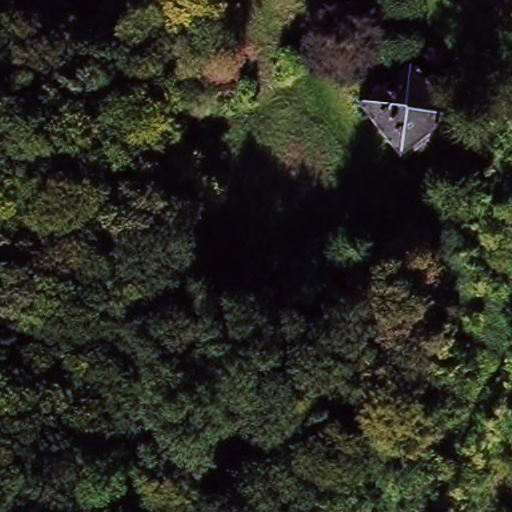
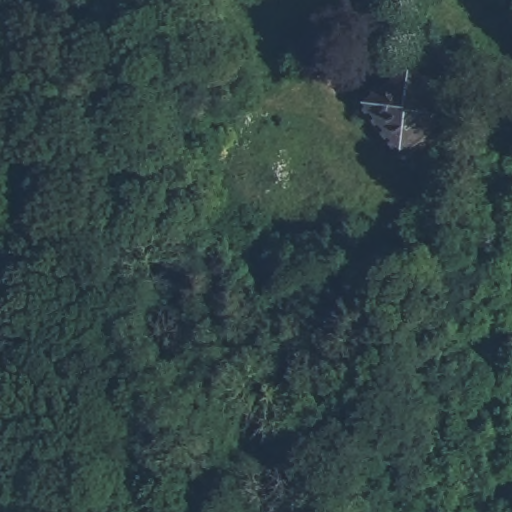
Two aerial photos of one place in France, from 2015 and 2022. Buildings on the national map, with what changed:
unchanged [(452,119),(405,156),(364,102),(412,67),(452,119)]
unchanged [(512,104),(512,123),(501,117),(512,104)]
unchanged [(446,262),(445,270),(437,269),(437,261),(446,262)]

